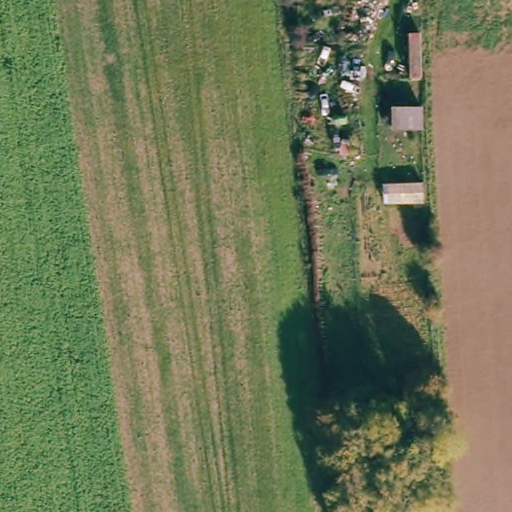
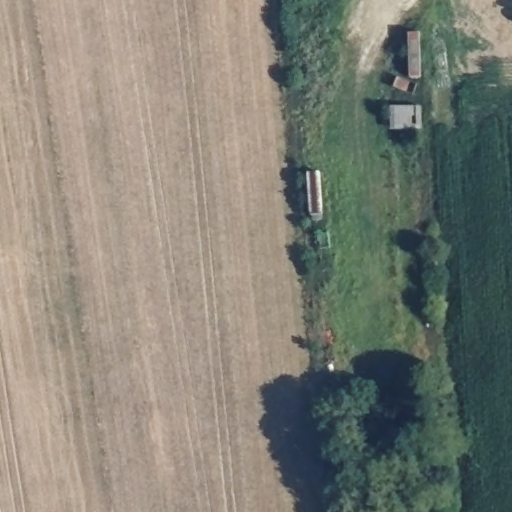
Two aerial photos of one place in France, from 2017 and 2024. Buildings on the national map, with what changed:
unchanged [(399,106),(423,107),(422,131),(386,132),(385,74),(401,72),(399,106)]

